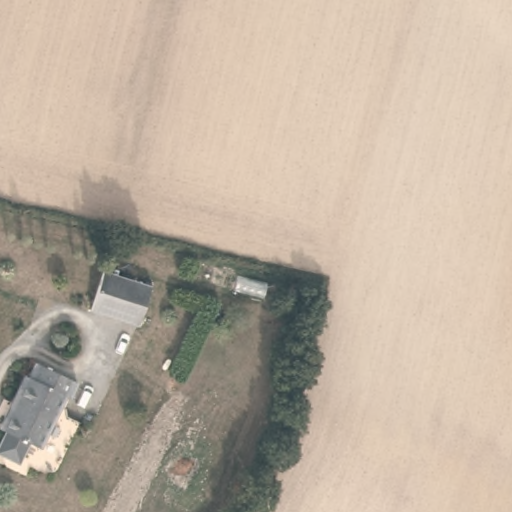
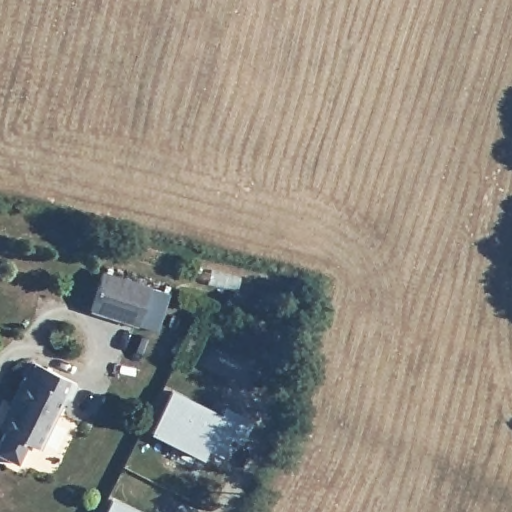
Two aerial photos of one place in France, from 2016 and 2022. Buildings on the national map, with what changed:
unchanged [(99,277),(149,288),(139,330),(89,319),(99,277)]
unchanged [(0,429),(0,427),(10,407),(8,402),(19,379),(23,379),(32,364),(74,383),(66,402),(60,400),(38,449),(27,445),(16,467),(0,459),(0,438),(3,432),(0,429)]
new [(172,392),(222,417),(226,409),(252,422),(241,443),(230,437),(221,455),(208,449),(202,459),(152,433),(172,392)]
new [(113,500),(137,512),(107,512),(113,500)]

